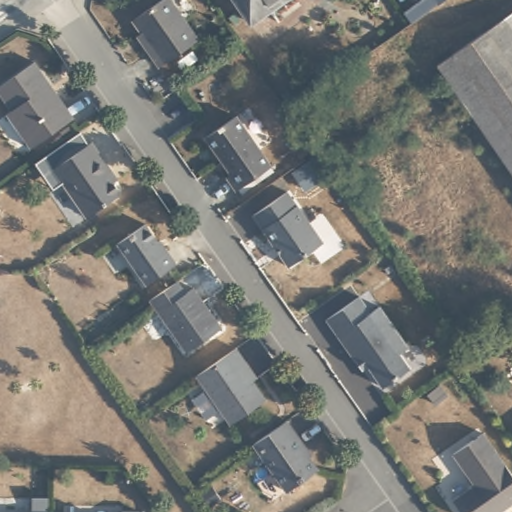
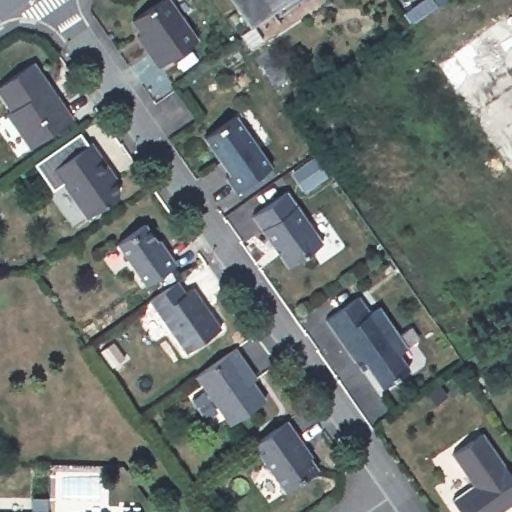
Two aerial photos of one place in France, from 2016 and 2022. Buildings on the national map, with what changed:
unchanged [(124,22),(154,0),(157,0),(188,44),(150,70),(139,56),(144,52),(124,22)]
unchanged [(274,13),(268,5),(249,18),(238,0),(292,0),(274,13)]
demolished [(512,31),(512,170),(437,64),(503,19),(512,31)]
unchanged [(32,62),(69,116),(26,147),(2,113),(7,110),(0,99),(0,84),(32,62)]
unchanged [(203,137),(235,116),(270,165),(233,192),(223,177),(229,174),(203,137)]
unchanged [(51,187),(40,171),(65,154),(85,140),(94,152),(96,150),(121,185),(115,189),(125,203),(93,225),(69,190),(66,192),(59,197),(51,187)]
unchanged [(286,191),(322,241),(288,265),(252,214),(286,191)]
unchanged [(146,222),(158,238),(159,237),(176,262),(146,282),(117,242),(146,222)]
unchanged [(183,298),(190,293),(218,332),(183,356),(145,303),(173,284),(183,298)]
unchanged [(333,340),(322,324),(355,300),(366,315),(376,309),(403,349),(396,355),(407,371),(379,390),(364,368),(356,373),(333,340)]
unchanged [(230,352),(242,367),(238,370),(262,404),(228,427),(193,378),(230,352)]
unchanged [(303,451),(301,453),(314,473),(282,494),(249,447),(283,423),(303,451)]
unchanged [(478,435),(512,484),(512,500),(495,512),(456,512),(448,500),(468,486),(449,456),(478,435)]
unchanged [(49,512),(31,512),(30,511),(49,512)]
unchanged [(140,511),(141,512),(124,512),(124,511),(140,511)]

